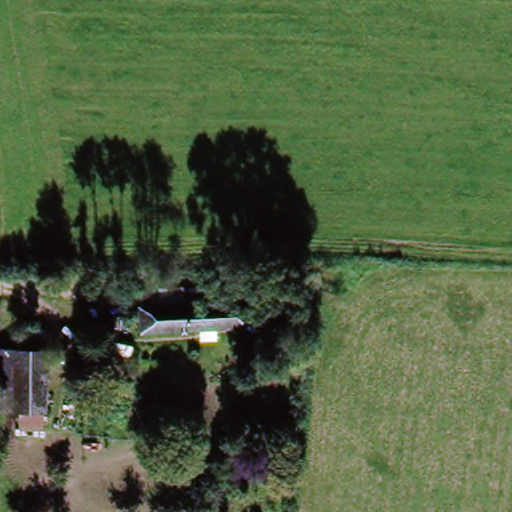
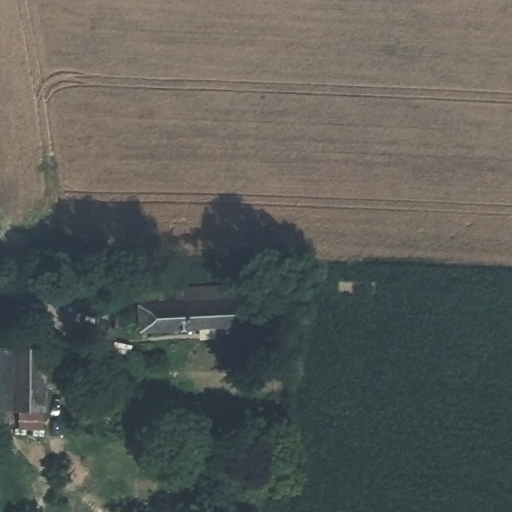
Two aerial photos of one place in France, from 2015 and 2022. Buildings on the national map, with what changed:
unchanged [(234,286),(235,304),(238,329),(143,339),(140,295),(187,290),(234,286)]
unchanged [(18,417),(18,412),(15,356),(20,354),(22,343),(48,341),(50,415),(50,428),(20,430),(18,417)]
unchanged [(15,356),(18,412),(0,413),(0,356),(15,356)]

